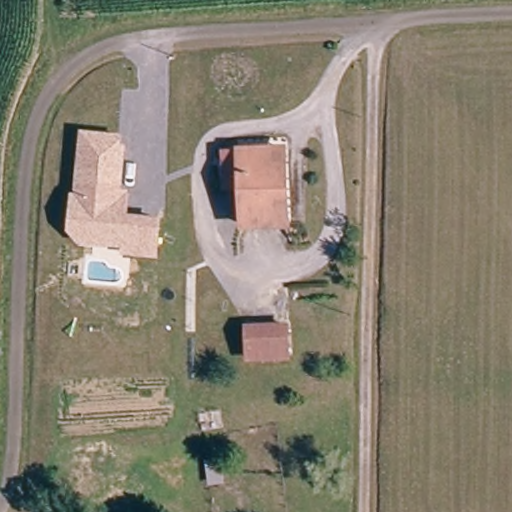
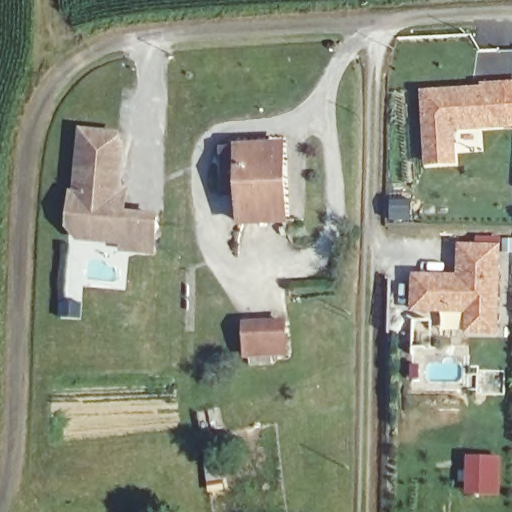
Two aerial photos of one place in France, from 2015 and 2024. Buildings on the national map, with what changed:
new [(482,86),(482,82),(505,81),(508,129),(456,132),(458,167),(426,167),(422,92),(482,86)]
unchanged [(130,238),(103,237),(101,237),(85,237),(74,226),(75,193),(78,193),(79,130),(96,130),(116,131),(115,142),(120,142),(120,186),(128,186),(127,210),(162,210),(161,222),(161,245),(145,245),(130,244),(130,238)]
unchanged [(288,145),(287,180),(285,225),(242,224),(243,172),(225,170),(224,144),(244,145),(275,145),(288,145)]
new [(501,245),(500,336),(465,336),(466,313),(413,315),(412,274),(457,275),(458,245),(501,245)]
unchanged [(275,330),(277,360),(240,360),(239,326),(275,330)]
new [(463,455),(501,456),(500,496),(462,495),(463,455)]

